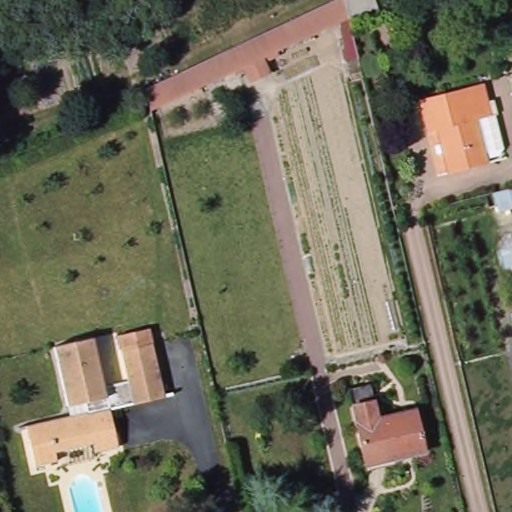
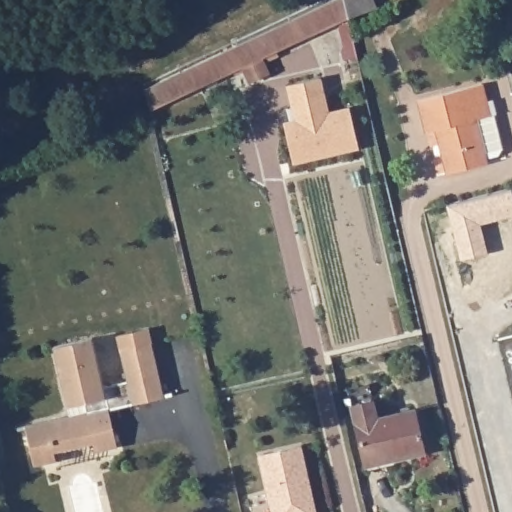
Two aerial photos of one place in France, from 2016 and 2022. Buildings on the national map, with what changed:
unchanged [(323,8),(339,0),(349,0),(353,18),(156,111),(150,89),(151,89),(323,8)]
new [(351,106),(360,149),(295,164),(285,122),(295,119),(287,85),(323,78),(331,111),(351,106)]
unchanged [(503,156),(490,159),(491,163),(453,173),(442,130),(432,132),(423,99),(486,84),(494,117),(499,116),(507,150),(503,156)]
unchanged [(504,211),(499,193),(512,189),(512,209),(504,211)]
unchanged [(132,376),(125,345),(157,337),(170,392),(114,404),(122,442),(100,447),(98,439),(60,447),(62,456),(40,461),(31,421),(74,412),(58,341),(98,331),(109,381),(132,376)]
unchanged [(420,409),(429,451),(370,465),(356,405),(378,400),(382,418),(420,409)]
new [(271,512),(259,454),(303,446),(318,512),(271,512)]

